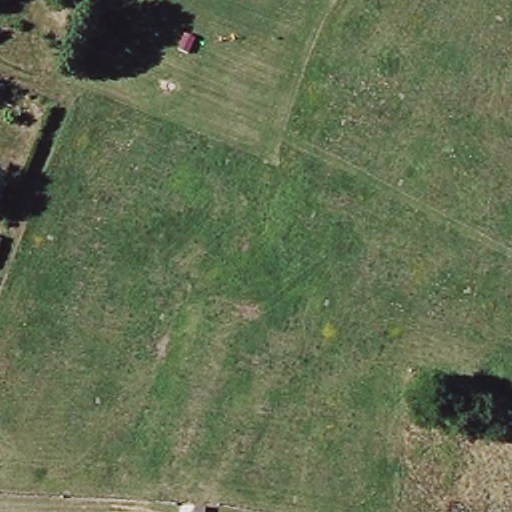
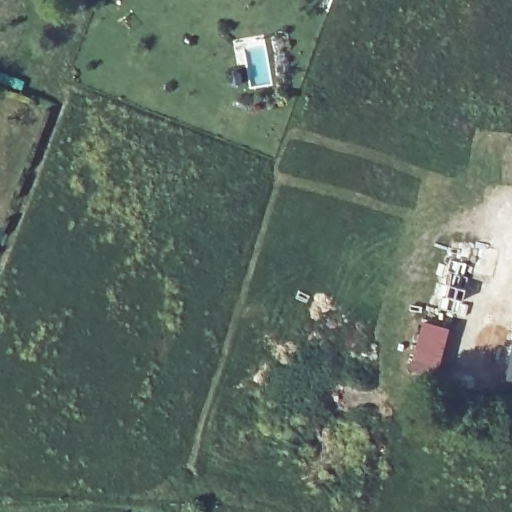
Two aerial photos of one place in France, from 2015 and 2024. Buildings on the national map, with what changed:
new [(421,321),(445,328),(431,376),(407,369),(421,321)]
new [(512,338),(512,378),(505,377),(512,338)]

